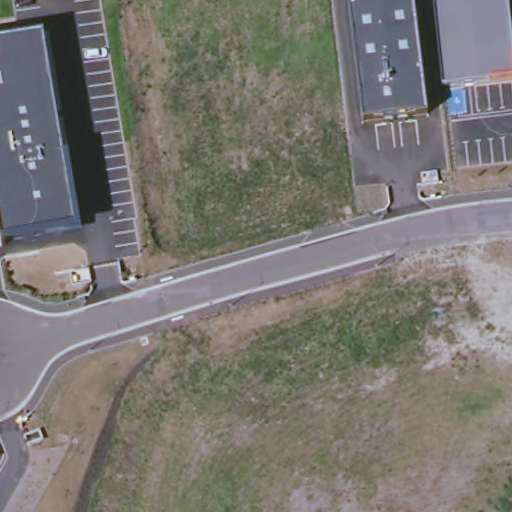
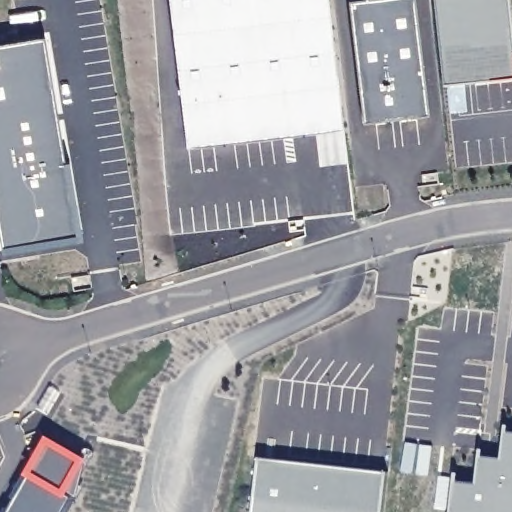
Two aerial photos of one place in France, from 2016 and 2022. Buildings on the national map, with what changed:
new [(169,0),(328,0),(343,132),(187,150),(169,0)]
unchanged [(358,0),(413,0),(427,113),(364,121),(350,1),(358,0)]
unchanged [(512,43),(512,76),(443,84),(434,0),(507,0),(512,43)]
unchanged [(2,242),(0,233),(0,41),(41,34),(75,229),(2,242)]
new [(459,474),(458,483),(477,485),(481,450),(485,451),(484,457),(503,460),(506,425),(510,425),(509,433),(512,434),(512,512),(450,512),(454,473),(459,474)]
new [(253,512),(260,458),(389,473),(385,512),(253,512)]

